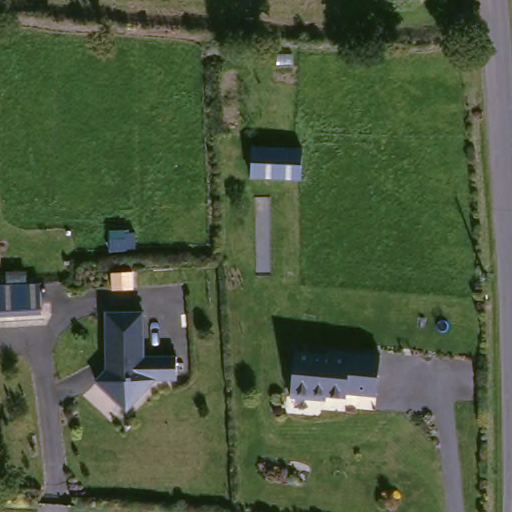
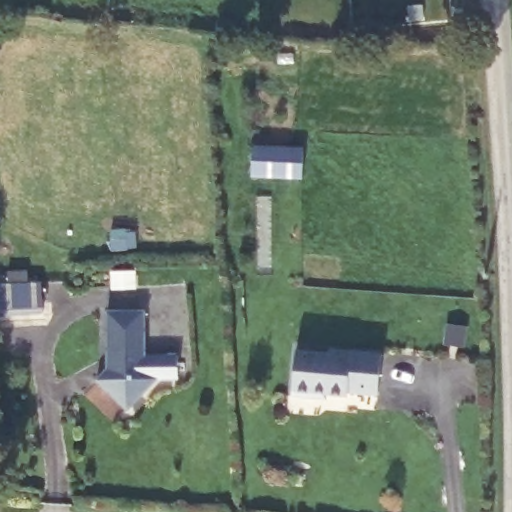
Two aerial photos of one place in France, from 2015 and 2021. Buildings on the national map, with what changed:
unchanged [(300,179),(250,178),(250,148),(300,150),(300,179)]
unchanged [(38,286),(38,318),(0,318),(0,286),(38,286)]
unchanged [(174,376),(151,376),(123,405),(93,378),(101,371),(102,366),(103,356),(102,310),(139,308),(140,352),(174,351),(174,376)]
unchanged [(375,390),(345,389),(344,393),(314,391),(310,395),(288,394),(292,349),(325,350),(325,346),(377,351),(375,390)]

